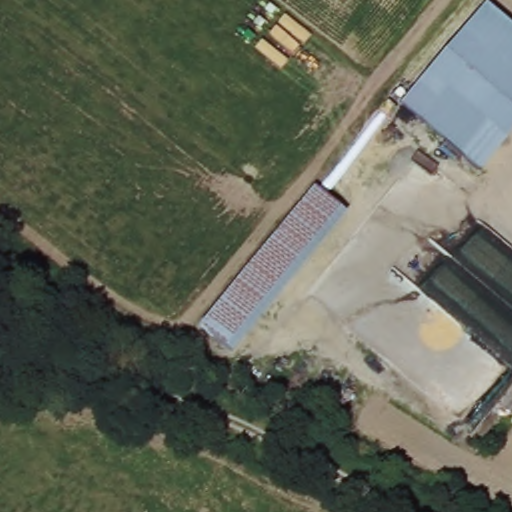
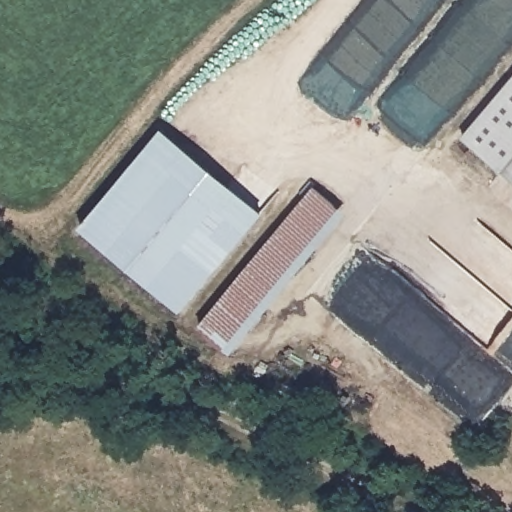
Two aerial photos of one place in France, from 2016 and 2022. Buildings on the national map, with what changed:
new [(501,171),(461,136),(512,76),(512,180),(501,171)]
new [(161,129),(264,212),(182,312),(79,229),(161,129)]
unchanged [(194,331),(311,188),(346,217),(225,357),(194,331)]

